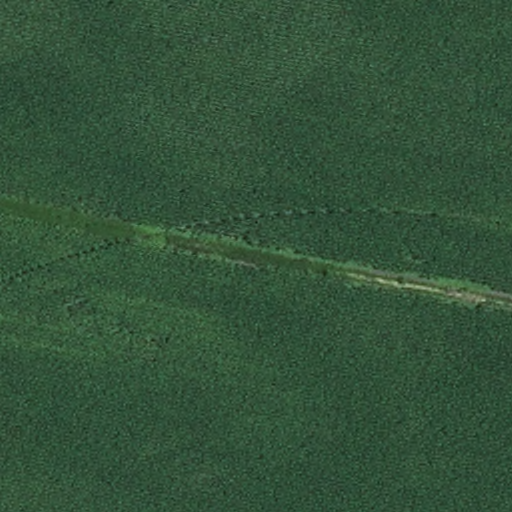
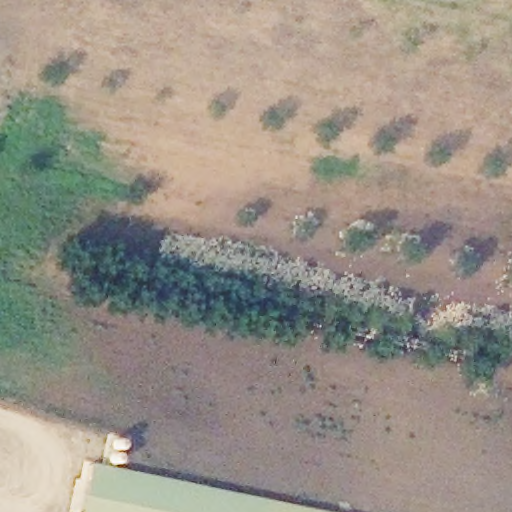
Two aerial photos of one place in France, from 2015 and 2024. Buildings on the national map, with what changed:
new [(88,463),(330,512),(78,512),(88,463)]

